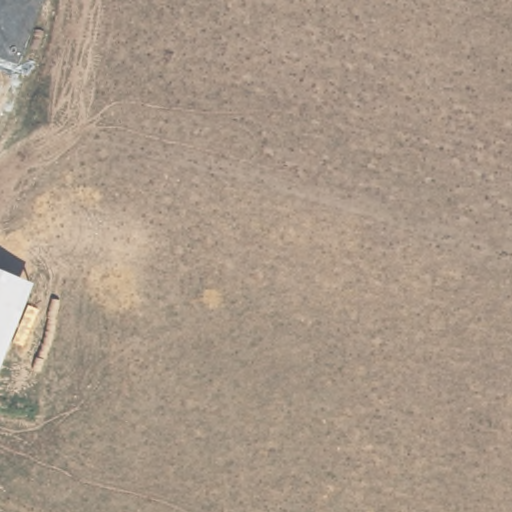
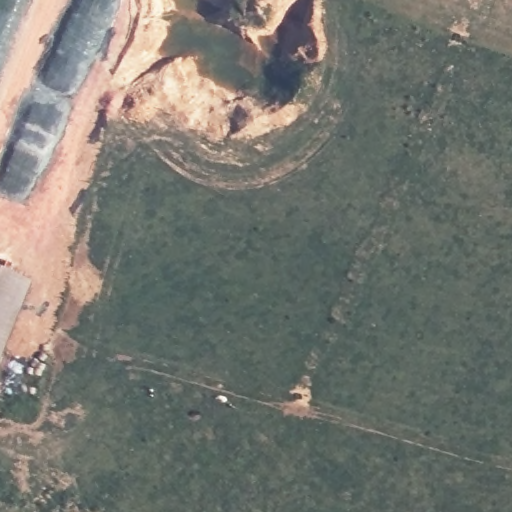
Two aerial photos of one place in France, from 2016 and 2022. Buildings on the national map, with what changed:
unchanged [(23,281),(0,358),(0,273),(23,281)]

